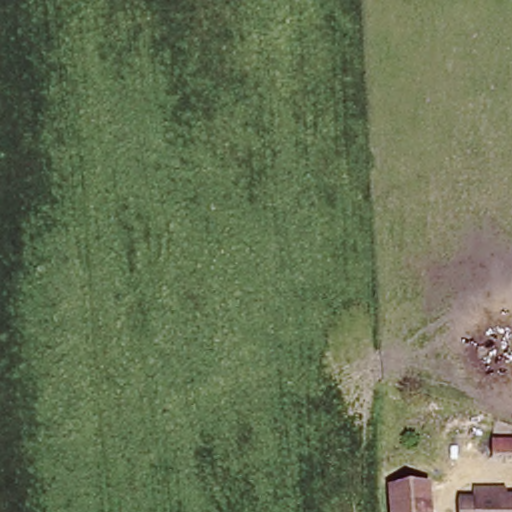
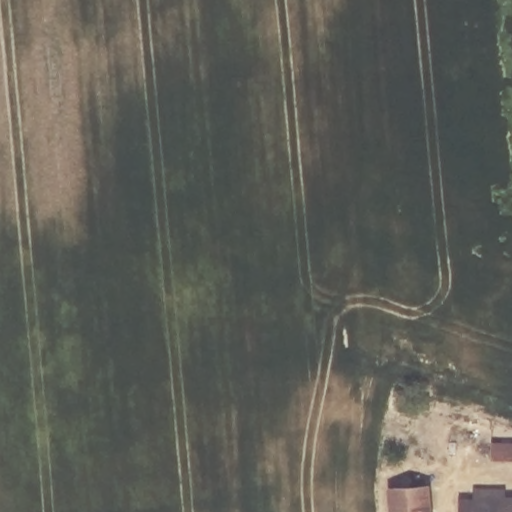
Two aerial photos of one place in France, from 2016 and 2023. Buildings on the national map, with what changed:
unchanged [(512,439),(512,454),(497,453),(498,439),(512,439)]
unchanged [(394,512),(392,478),(430,476),(432,512),(394,512)]
unchanged [(498,496),(512,496),(512,512),(467,512),(467,509),(477,509),(478,488),(498,488),(498,496)]

